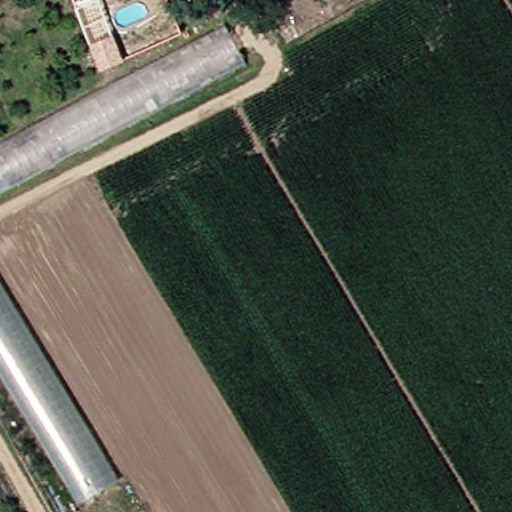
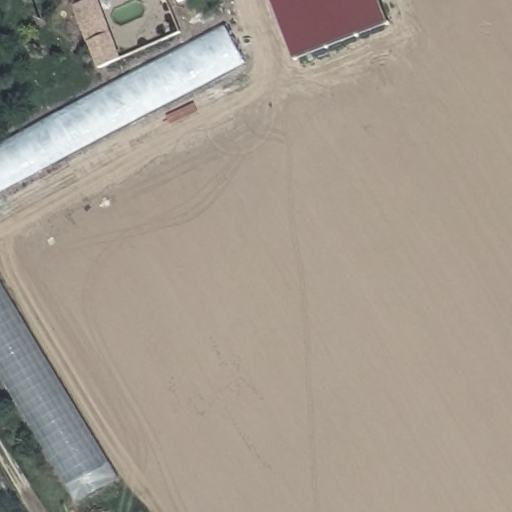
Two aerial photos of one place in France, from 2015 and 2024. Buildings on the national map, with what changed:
new [(88,0),(97,0),(121,60),(97,70),(73,6),(88,0)]
new [(273,0),(381,0),(389,22),(296,57),(273,0)]
unchanged [(237,61),(0,184),(0,140),(218,26),(237,61)]
unchanged [(0,273),(122,475),(77,502),(0,371),(0,273)]

